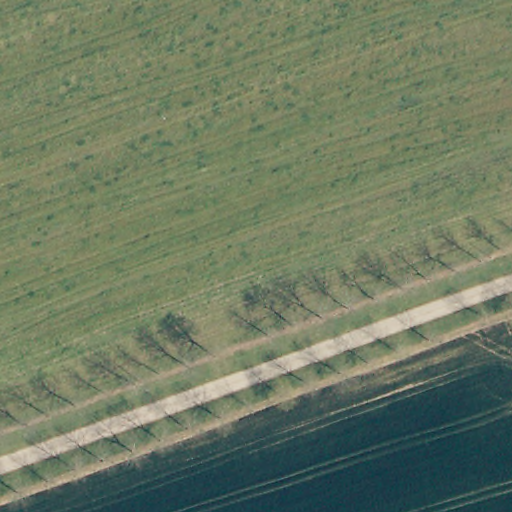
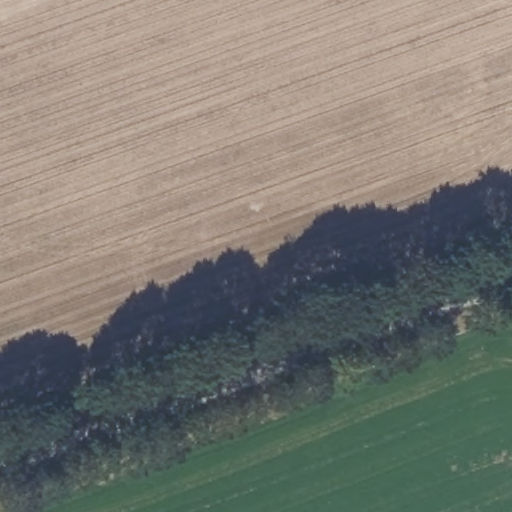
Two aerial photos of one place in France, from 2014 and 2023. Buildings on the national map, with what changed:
[]

